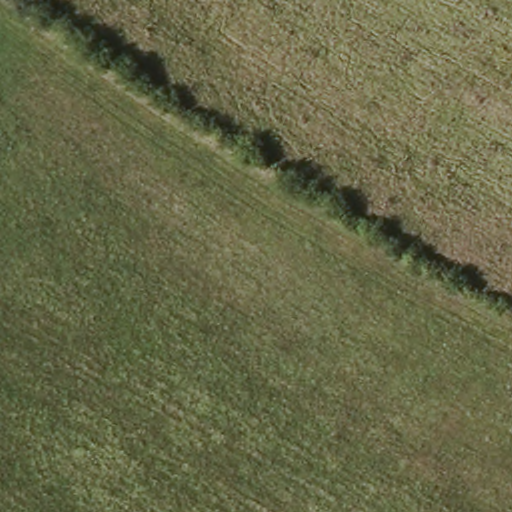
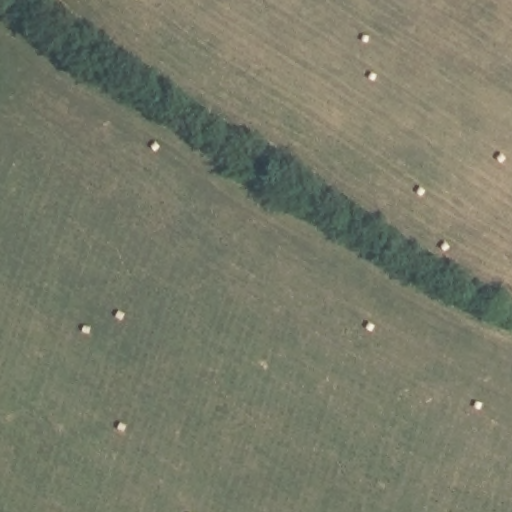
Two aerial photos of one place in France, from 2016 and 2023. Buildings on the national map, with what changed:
[]

